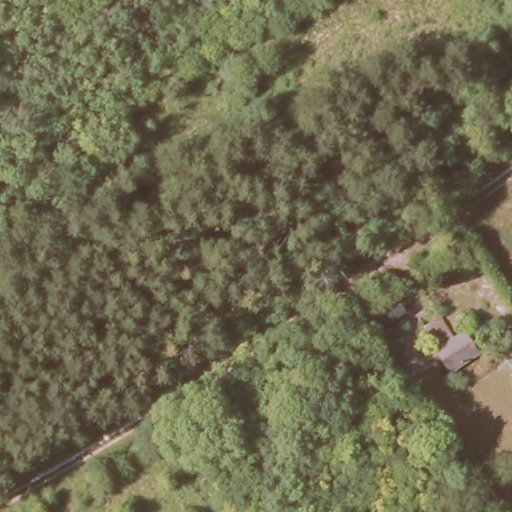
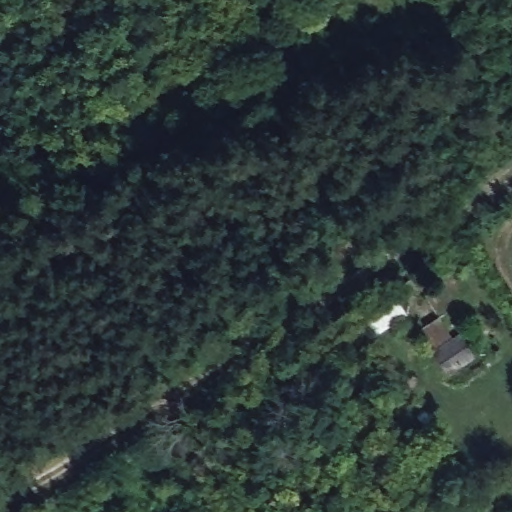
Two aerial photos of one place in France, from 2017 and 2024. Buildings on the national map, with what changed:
unchanged [(446,315),(464,336),(475,356),(444,373),(433,349),(420,331),(446,315)]

